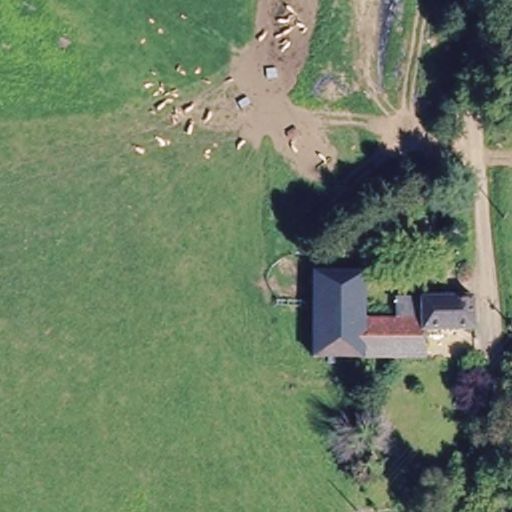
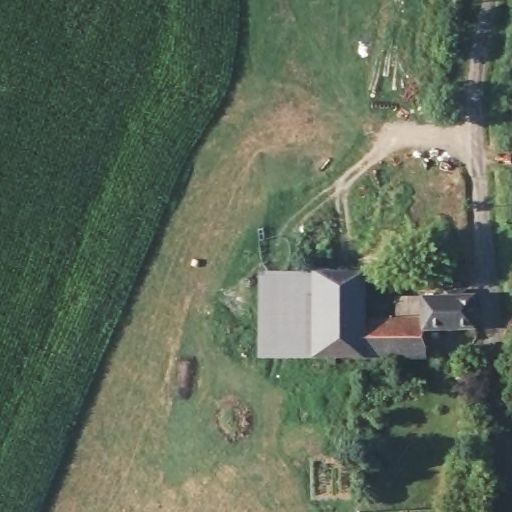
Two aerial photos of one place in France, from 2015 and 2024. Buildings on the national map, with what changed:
new [(310,361),(256,359),(257,271),(309,273),(310,361)]
unchanged [(310,361),(309,273),(359,272),(360,319),(400,319),(402,294),(445,296),(446,286),(463,286),(465,291),(474,291),(474,326),(426,327),(425,356),(353,357),(310,361)]

